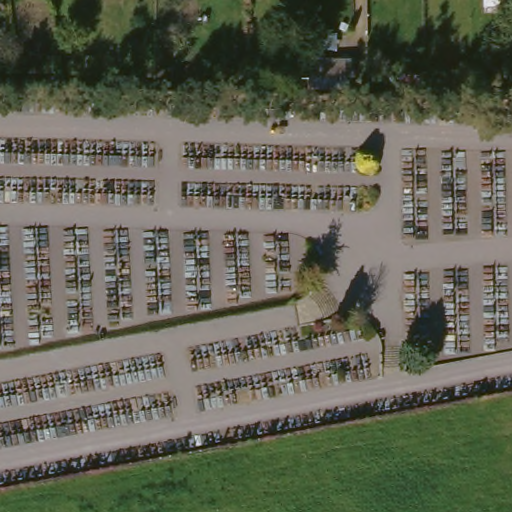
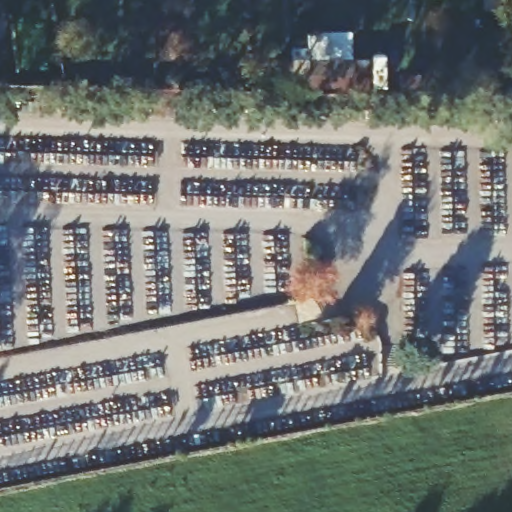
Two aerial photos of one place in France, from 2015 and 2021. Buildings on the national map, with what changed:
unchanged [(361,77),(299,74),(299,49),(321,49),(320,58),(363,58),(361,77)]

